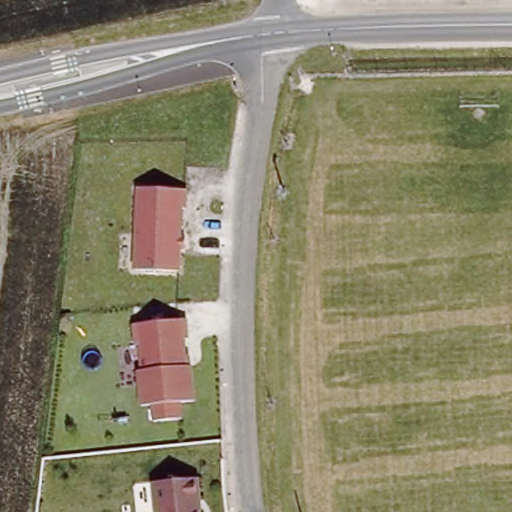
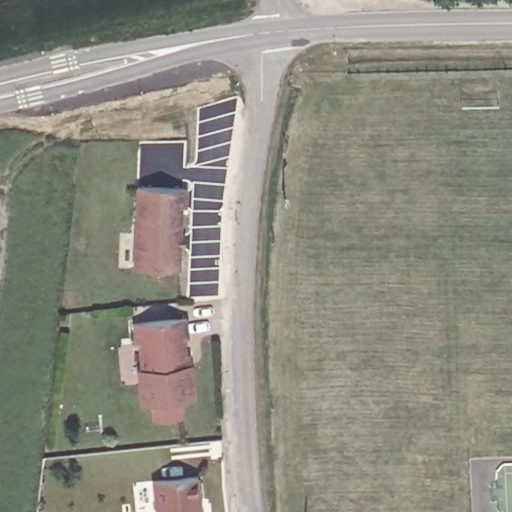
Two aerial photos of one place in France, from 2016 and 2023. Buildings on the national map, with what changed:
unchanged [(182,209),(178,209),(174,272),(130,269),(135,188),(183,191),(182,209)]
unchanged [(184,342),(180,342),(182,369),(187,368),(190,403),(176,404),(178,421),(150,424),(148,407),(137,408),(134,373),(137,373),(135,347),(131,347),(129,327),(182,321),(184,342)]
unchanged [(149,480),(194,476),(196,498),(194,498),(195,512),(152,512),(149,480)]

